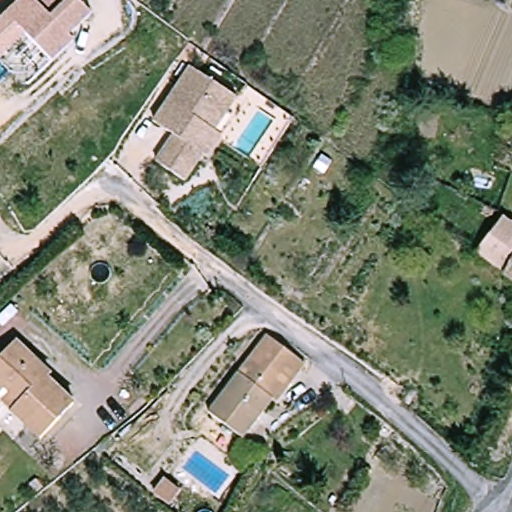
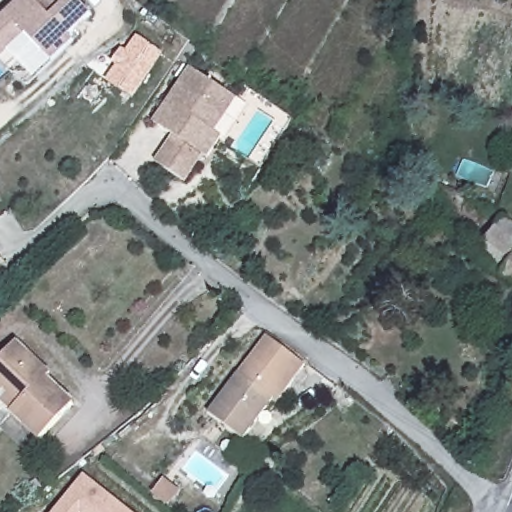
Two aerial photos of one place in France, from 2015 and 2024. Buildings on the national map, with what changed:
unchanged [(19,0),(78,0),(90,13),(69,35),(74,40),(51,60),(25,32),(0,56),(0,18),(19,0)]
new [(137,36),(165,56),(135,100),(107,81),(137,36)]
unchanged [(208,157),(203,155),(185,181),(158,163),(176,136),(157,122),(192,70),(228,93),(238,100),(216,132),(222,137),(208,157)]
unchanged [(507,217),(512,220),(512,280),(480,255),(507,217)]
unchanged [(305,365),(275,403),(271,401),(242,438),(207,412),(265,335),(305,365)]
unchanged [(15,341),(50,373),(46,378),(73,402),(38,438),(13,415),(0,402),(0,358),(15,341)]
new [(128,512),(57,512),(85,477),(128,512)]
unchanged [(37,481),(43,487),(36,492),(30,486),(37,481)]

